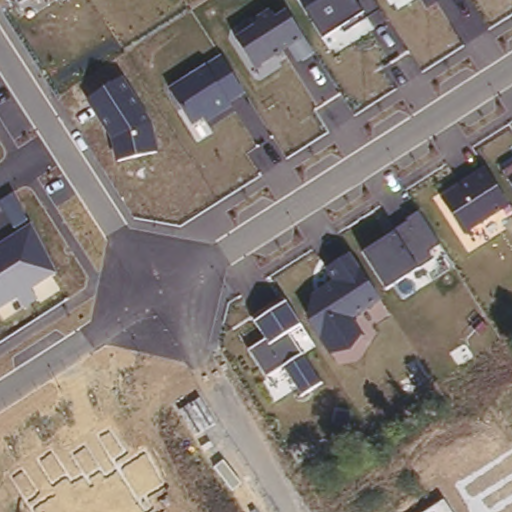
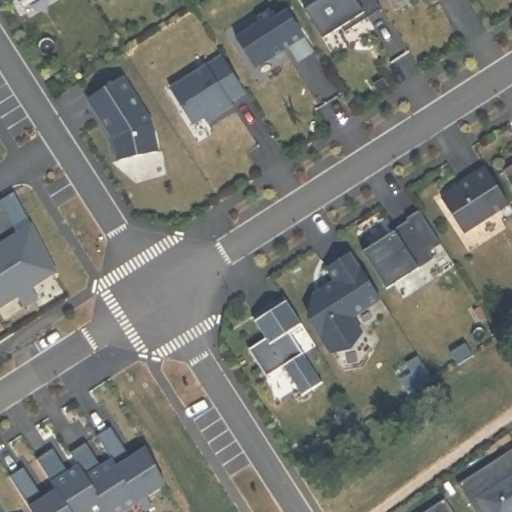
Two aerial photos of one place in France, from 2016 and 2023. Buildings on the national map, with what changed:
unchanged [(19,2),(18,0),(22,0),(19,2)]
unchanged [(341,25),(324,37),(307,9),(320,0),(377,0),(382,10),(346,34),(341,25)]
unchanged [(236,37),(272,12),(275,17),(288,9),(313,52),(297,64),(287,50),(255,68),(236,37)]
unchanged [(230,105),(232,108),(209,124),(204,117),(192,127),(168,90),(221,55),(246,94),(230,105)]
unchanged [(112,140),(87,99),(123,76),(151,120),(159,152),(117,160),(112,140)]
unchanged [(440,196),(487,166),(510,205),(463,234),(440,196)]
unchanged [(503,172),(512,166),(512,184),(503,172)]
unchanged [(0,209),(0,201),(14,193),(58,271),(0,308),(0,240),(15,231),(0,209)]
unchanged [(387,288),(361,249),(394,229),(421,212),(442,243),(430,251),(436,259),(417,268),(387,288)]
unchanged [(354,320),(363,333),(352,350),(330,353),(321,337),(311,317),(311,294),(330,282),(323,271),(353,253),(380,302),(354,320)]
unchanged [(300,397),(282,369),(268,378),(249,351),(265,340),(253,322),(286,301),(301,326),(288,336),(320,383),(300,397)]
new [(70,455),(86,445),(101,469),(112,462),(96,438),(110,429),(126,454),(112,463),(117,469),(145,451),(164,487),(145,499),(152,510),(148,512),(145,512),(139,503),(125,512),(69,512),(56,492),(36,461),(52,451),(68,475),(79,468),(70,455)]
new [(493,465),(512,453),(512,494),(493,465)]
new [(512,494),(512,512),(475,512),(459,487),(493,465),(512,494)]
new [(22,470),(42,501),(56,492),(69,512),(30,512),(29,511),(9,477),(22,470)]
unchanged [(453,512),(422,512),(445,498),(453,512)]

